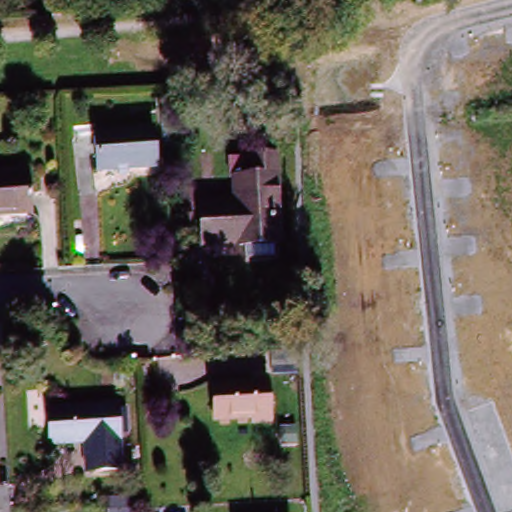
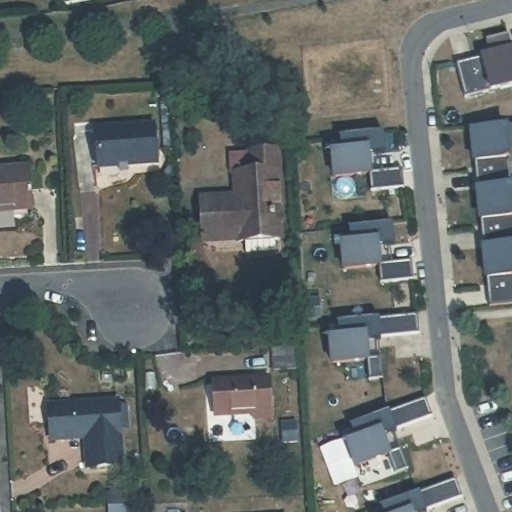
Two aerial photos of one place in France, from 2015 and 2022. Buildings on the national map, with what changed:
new [(489,53),(485,39),(507,34),(510,48),(512,47),(512,89),(488,95),(486,86),(466,96),(457,63),(479,56),(489,53)]
new [(509,146),(510,161),(512,174),(512,304),(491,307),(488,280),(484,279),(467,130),(506,126),(512,125),(512,145),(509,146)]
unchanged [(152,129),(154,170),(99,172),(97,131),(152,129)]
new [(385,151),(380,151),(383,170),(402,168),(403,186),(372,190),(371,174),(332,179),(328,153),(341,151),(340,138),(382,133),(385,151)]
unchanged [(250,240),(243,240),(242,235),(207,236),(206,200),(247,198),(246,174),(226,176),(224,155),(244,154),(277,151),(279,172),(282,239),(279,239),(280,255),(250,256),(250,240)]
unchanged [(0,212),(0,171),(25,169),(27,211),(0,212)]
new [(396,249),(390,250),(392,262),(411,259),(413,280),(382,283),(379,266),(342,271),(337,245),(350,243),(348,229),(391,223),(396,249)]
new [(378,319),(416,314),(418,333),(380,333),(380,340),(367,340),(370,356),(380,357),(382,379),(370,380),(368,360),(331,365),(326,339),(338,337),(337,323),(378,319)]
unchanged [(308,373),(281,374),(280,353),(307,351),(308,373)]
unchanged [(265,414),(248,415),(248,409),(211,411),(210,381),(264,378),(265,414)]
new [(389,411),(425,399),(431,415),(394,426),(396,431),(384,436),(389,450),(399,449),(407,468),(396,472),(389,454),(354,468),(343,444),(355,439),(350,427),(389,411)]
unchanged [(114,464),(84,465),(83,443),(52,444),(50,407),(111,404),(114,464)]
new [(462,496),(425,509),(426,512),(382,512),(380,508),(419,492),(455,479),(462,496)]
unchanged [(118,511),(117,496),(145,495),(146,510),(146,512),(119,512),(118,511)]

